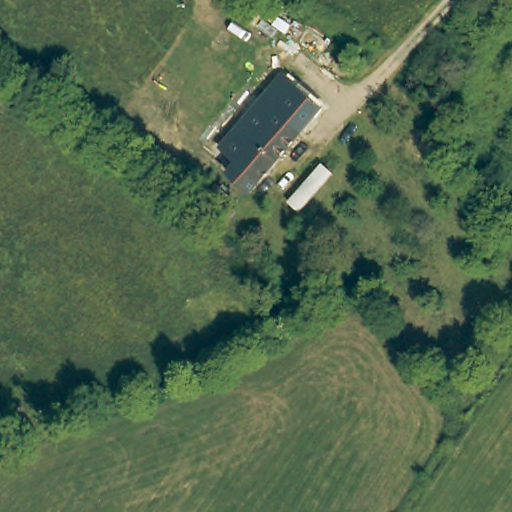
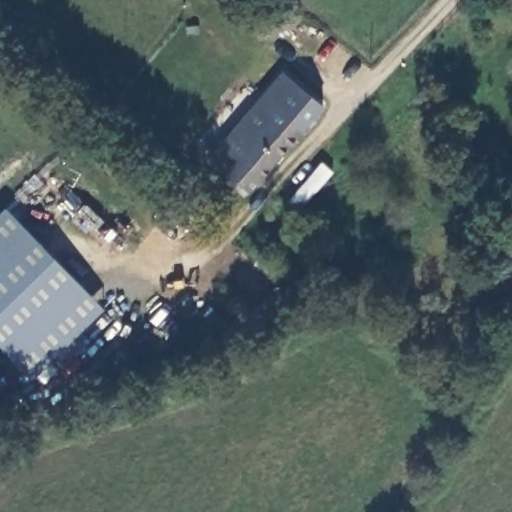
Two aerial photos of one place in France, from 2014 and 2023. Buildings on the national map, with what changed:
unchanged [(230,168),(241,155),(224,140),(286,66),(305,82),(326,100),(323,104),(305,125),(256,182),(253,187),(230,168)]
new [(6,207),(103,309),(34,378),(0,344),(0,213),(6,207)]

